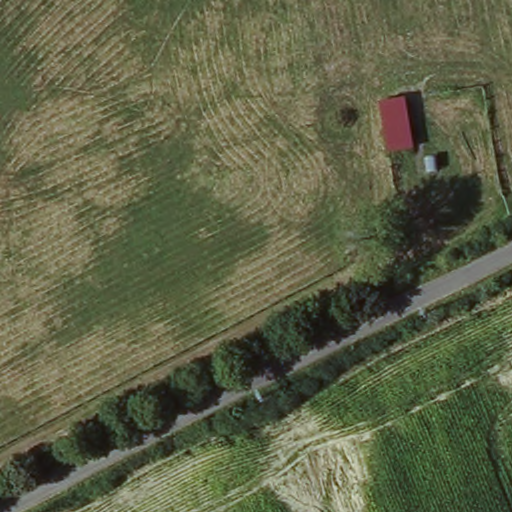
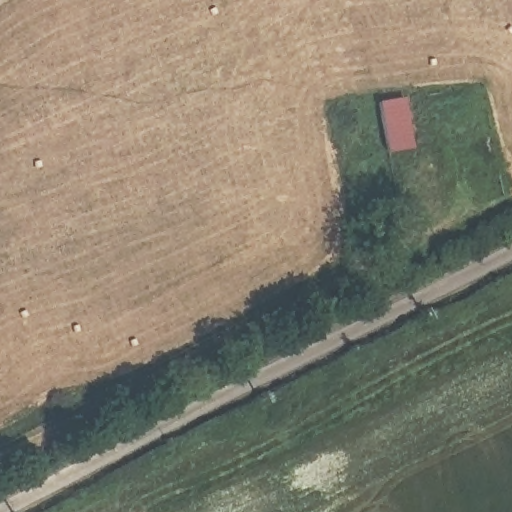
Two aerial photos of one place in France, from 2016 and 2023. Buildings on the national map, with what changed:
unchanged [(404,97),(412,147),(387,152),(379,101),(404,97)]

